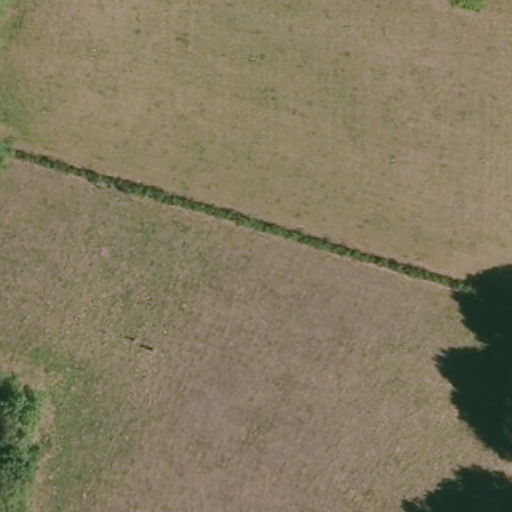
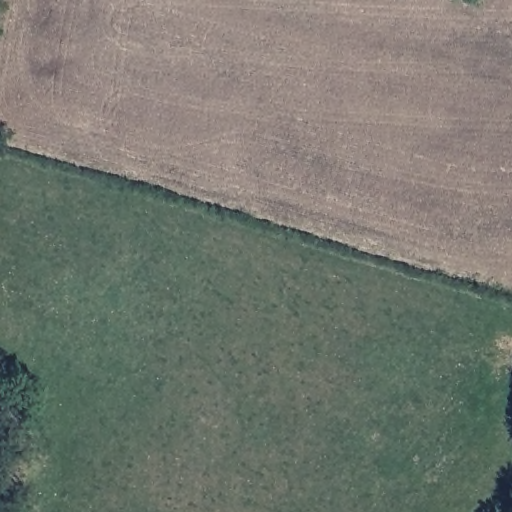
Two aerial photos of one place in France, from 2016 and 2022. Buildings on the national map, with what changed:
[]

